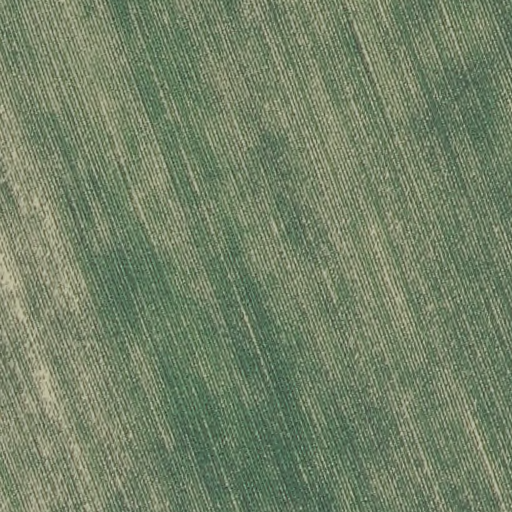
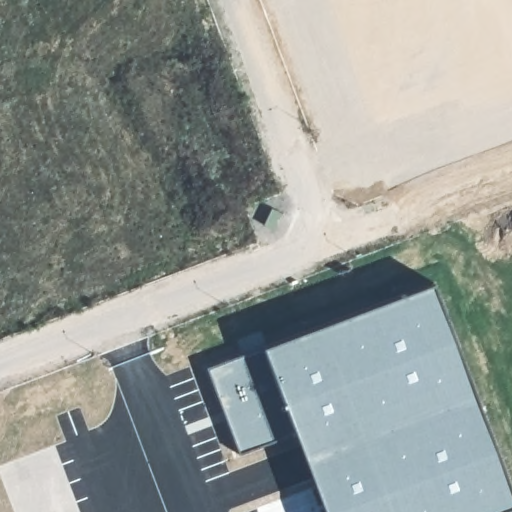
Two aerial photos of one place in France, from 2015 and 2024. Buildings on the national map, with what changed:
new [(512,493),(512,505),(494,512),(323,512),(317,497),(304,454),(293,430),(261,346),(432,282),(512,493)]
new [(261,346),(293,430),(239,452),(205,367),(261,346)]
new [(314,498),(317,497),(323,512),(258,512),(256,507),(310,489),(314,498)]

